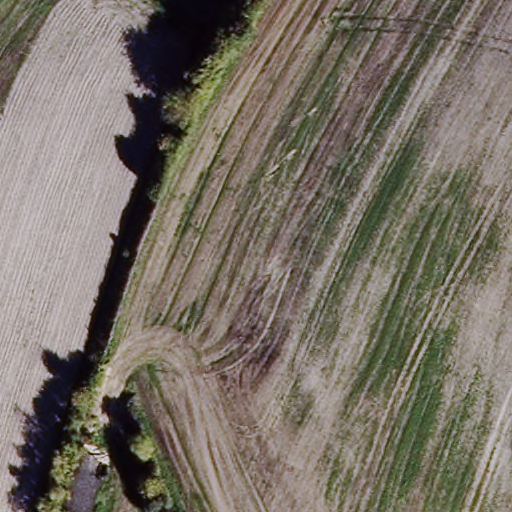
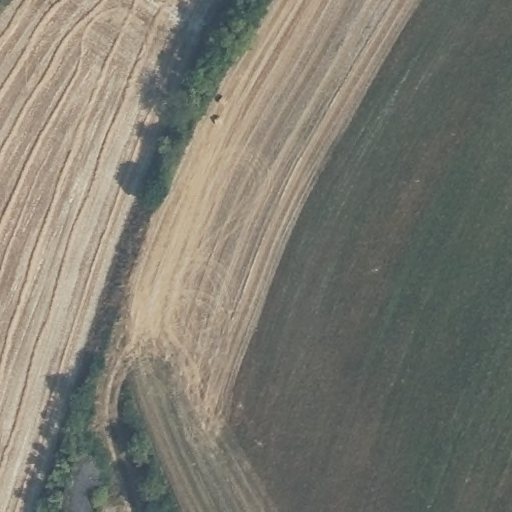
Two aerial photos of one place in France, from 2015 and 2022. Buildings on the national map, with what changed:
unchanged [(67,512),(49,506),(69,449),(109,462),(92,512),(67,512)]

